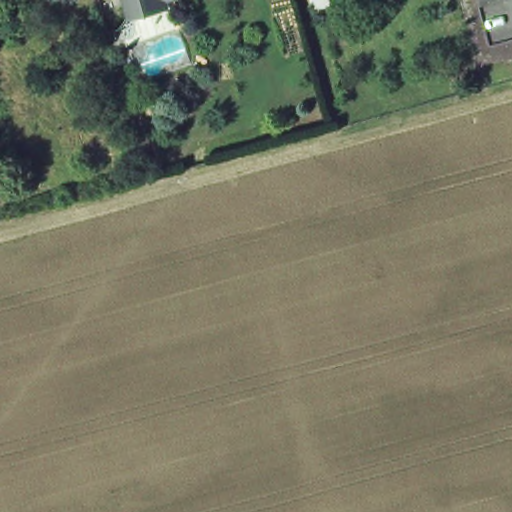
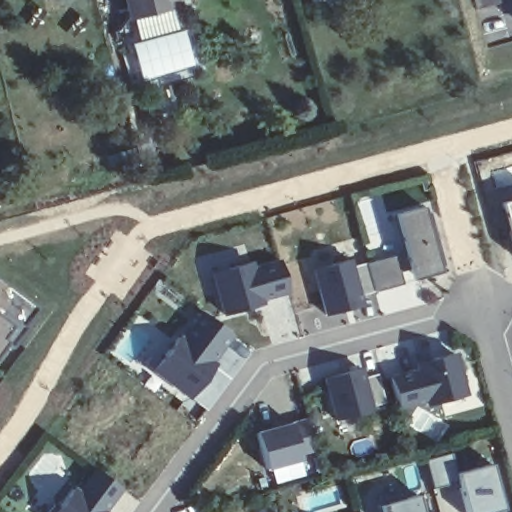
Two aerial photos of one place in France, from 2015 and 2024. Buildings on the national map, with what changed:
unchanged [(151,13),(129,19),(124,0),(161,0),(148,4),(151,13)]
unchanged [(478,10),(475,0),(504,0),(504,3),(478,10)]
new [(512,230),(501,199),(512,196),(512,230)]
new [(404,252),(394,215),(392,215),(391,215),(423,205),(424,212),(429,211),(444,265),(439,267),(441,272),(418,278),(415,267),(399,271),(403,284),(374,291),(366,263),(404,252)]
new [(360,295),(363,305),(325,315),(313,269),(350,259),(352,266),(366,263),(374,291),(360,295)]
new [(224,314),(213,273),(249,263),(251,270),(281,261),(289,290),(259,298),(261,304),(260,304),(246,308),(224,314)]
new [(1,281),(38,308),(24,325),(27,327),(12,347),(5,342),(0,349),(0,280),(1,281)]
new [(189,397),(153,370),(178,337),(182,340),(203,312),(231,333),(210,361),(214,365),(213,365),(204,377),(189,397)]
new [(417,363),(418,363),(432,359),(453,353),(464,395),(428,405),(426,400),(398,407),(389,378),(419,370),(417,363)]
new [(361,368),(371,410),(336,420),(324,378),(361,368)]
new [(307,420),(315,449),(300,453),(301,459),(266,469),(256,433),(307,420)]
new [(451,452),(457,473),(491,463),(504,509),(492,512),(466,512),(458,482),(433,488),(425,460),(451,452)]
new [(53,504),(58,507),(72,489),(78,493),(96,470),(120,487),(102,511),(103,512),(48,512),(53,504)]
new [(379,505),(377,500),(402,492),(404,498),(417,495),(422,512),(381,512),(379,505)]

